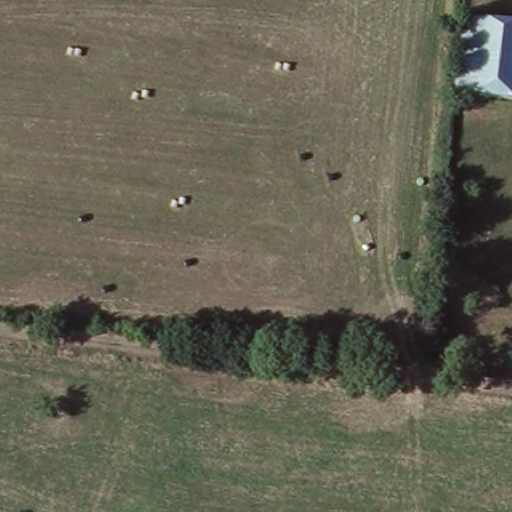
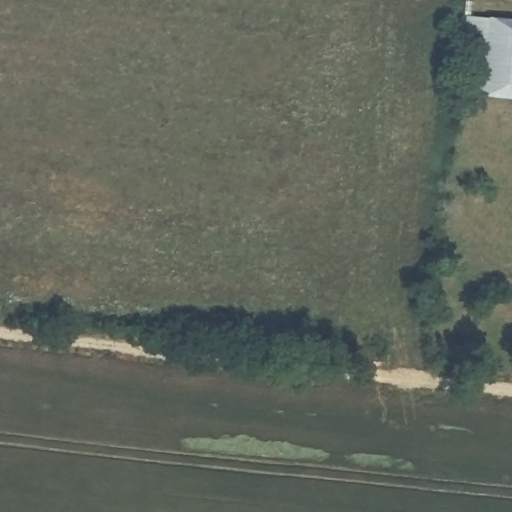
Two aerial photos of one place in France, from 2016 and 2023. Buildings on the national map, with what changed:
unchanged [(475,89),(481,14),(512,18),(512,93),(475,89)]

